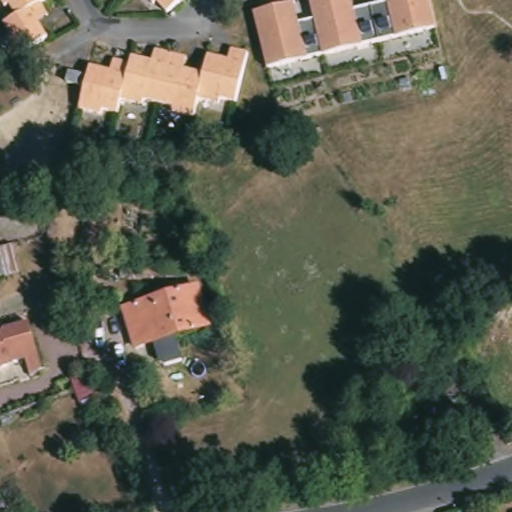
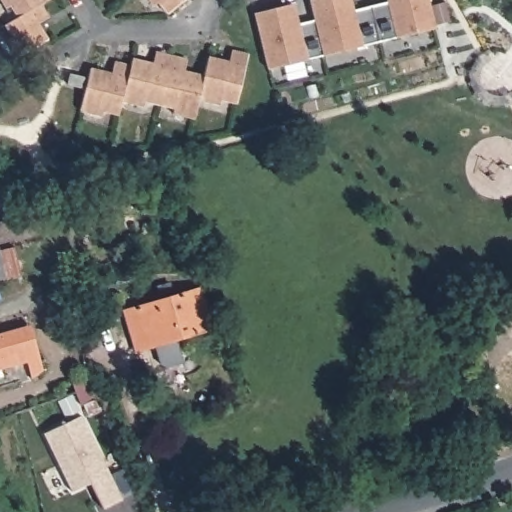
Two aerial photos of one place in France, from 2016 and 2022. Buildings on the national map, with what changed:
unchanged [(14,52),(5,36),(10,34),(2,21),(15,14),(8,1),(4,4),(2,0),(39,0),(43,7),(46,14),(36,20),(45,35),(14,52)]
unchanged [(160,2),(156,5),(151,0),(185,0),(170,14),(160,2)]
unchanged [(267,71),(250,14),(290,3),(295,26),(313,22),(307,1),(313,0),(349,0),(352,13),(385,2),(384,0),(427,0),(435,29),(267,71)]
unchanged [(123,64),(132,66),(134,59),(151,63),(155,51),(163,53),(181,58),(188,60),(185,71),(204,76),(209,57),(229,62),(232,50),(238,51),(249,54),(235,104),(221,100),(220,105),(198,100),(193,120),(172,115),(173,109),(146,102),(144,107),(124,102),(120,115),(106,111),(105,117),(101,116),(83,111),(94,70),(108,73),(111,74),(115,61),(123,64)]
unchanged [(87,79),(85,89),(71,85),(74,75),(87,79)]
unchanged [(22,277),(0,283),(0,253),(18,250),(22,277)]
unchanged [(202,287),(213,327),(135,349),(125,309),(202,287)]
unchanged [(0,330),(28,325),(41,369),(30,377),(26,360),(13,363),(5,366),(0,367),(0,330)]
unchanged [(78,397),(73,383),(71,384),(67,368),(81,365),(86,379),(91,393),(78,397)]
new [(80,412),(118,497),(99,506),(87,480),(69,488),(42,429),(80,412)]
unchanged [(470,420),(478,447),(457,454),(448,426),(470,420)]

